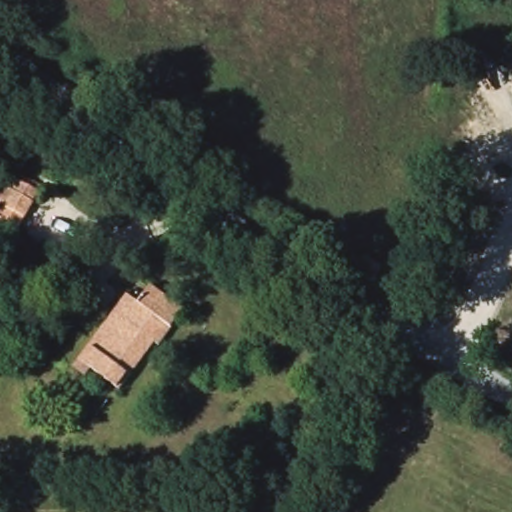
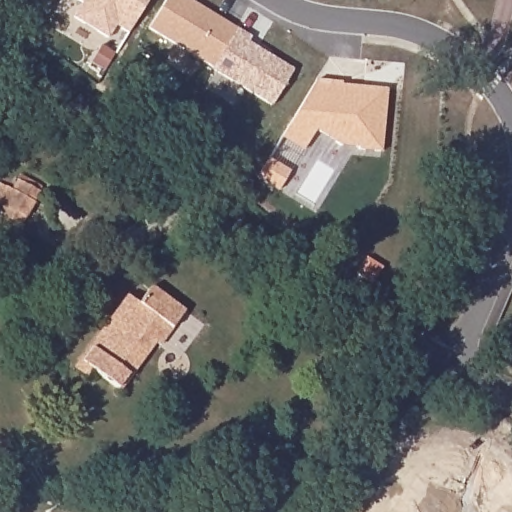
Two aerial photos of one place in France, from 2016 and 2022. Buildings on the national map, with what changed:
new [(130,32),(118,24),(110,38),(73,16),(82,2),(80,0),(148,0),(130,32)]
new [(166,0),(190,0),(199,5),(197,9),(215,20),(218,17),(237,28),(213,67),(149,28),(166,0)]
new [(252,37),(250,41),(294,67),(271,104),(213,67),(237,28),(252,37)]
new [(382,151),(358,150),(358,146),(340,144),(315,130),(304,150),(281,136),(317,78),(343,81),(343,84),(388,88),(382,151)]
unchanged [(0,207),(1,205),(0,204),(0,183),(12,189),(17,179),(20,174),(43,187),(41,191),(20,228),(17,233),(0,223),(0,207)]
unchanged [(366,259),(353,277),(316,251),(329,233),(366,259)]
unchanged [(80,360),(108,323),(118,309),(128,294),(140,303),(151,286),(186,311),(172,329),(168,325),(156,342),(121,390),(92,369),(86,377),(74,368),(80,360)]

